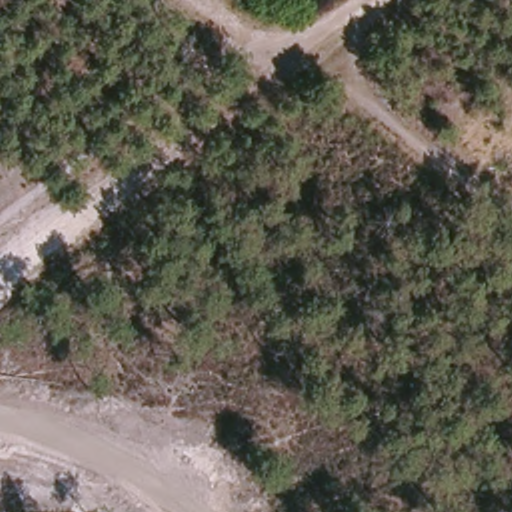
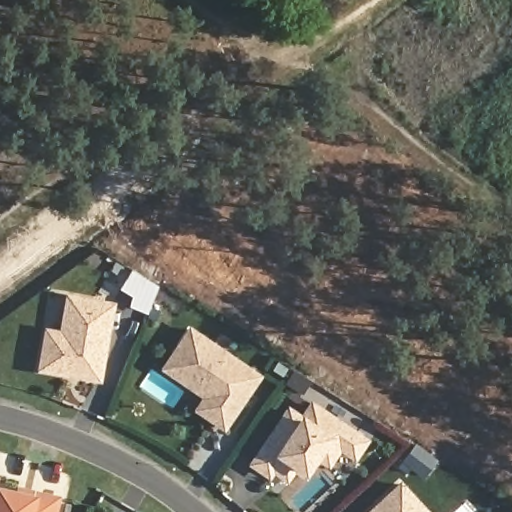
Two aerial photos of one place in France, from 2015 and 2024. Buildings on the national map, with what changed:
new [(128,273),(152,288),(142,313),(127,307),(130,297),(117,290),(128,273)]
new [(64,294),(116,302),(101,383),(36,372),(43,327),(59,330),(64,294)]
new [(219,428),(192,410),(201,397),(188,388),(159,368),(170,354),(185,330),(254,377),(245,391),(241,396),(219,428)]
new [(355,462),(340,452),(328,468),(317,461),(306,477),(305,480),(293,473),(287,482),(272,472),(268,478),(248,466),(288,406),(302,416),(311,401),(371,440),(355,462)]
new [(412,446),(433,462),(421,478),(408,469),(405,474),(397,467),(412,446)]
new [(402,482),(430,512),(368,512),(402,482)]
new [(37,493),(37,490),(61,495),(57,512),(0,512),(0,485),(37,493)]

